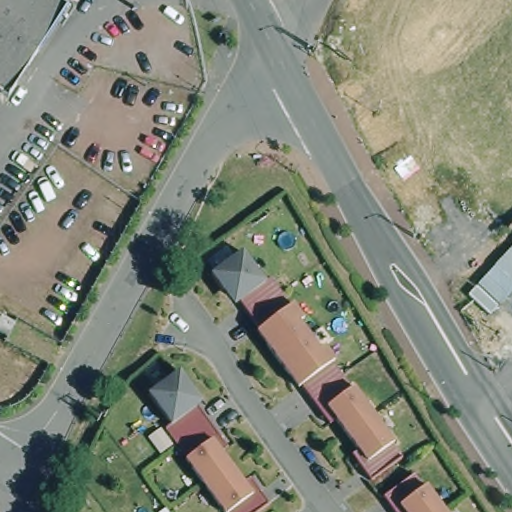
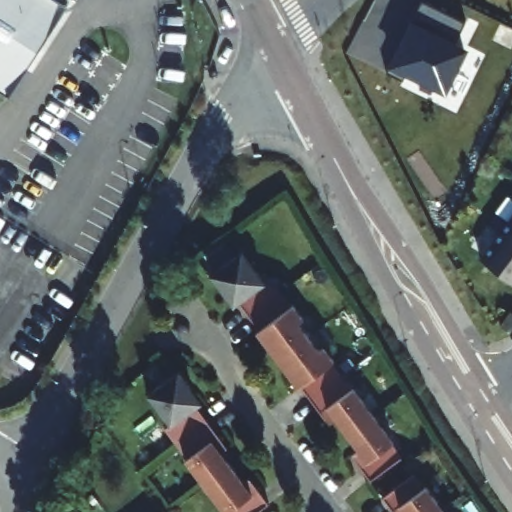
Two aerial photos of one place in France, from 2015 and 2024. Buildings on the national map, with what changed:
unchanged [(0,93),(0,0),(54,0),(69,10),(9,99),(0,93)]
new [(457,41),(470,47),(446,95),(389,67),(412,18),(420,0),(466,21),(457,41)]
new [(480,257),(512,214),(512,280),(480,257)]
unchanged [(245,246),(267,276),(272,273),(283,288),(293,301),(295,300),(305,314),(300,317),(310,331),(321,345),(325,342),(336,356),(334,357),(344,371),(354,384),(355,383),(375,410),(395,438),(394,439),(404,453),(372,476),(353,450),(360,445),(338,415),(331,420),(312,393),(303,380),(300,382),(280,354),(259,326),(262,324),(252,310),(236,289),(233,291),(227,283),(225,285),(213,268),(245,246)]
unchanged [(11,330),(0,323),(0,319),(7,310),(19,318),(11,330)]
unchanged [(192,381),(190,382),(197,391),(193,393),(229,442),(222,447),(245,477),(251,472),(270,498),(252,512),(232,512),(229,508),(227,509),(187,454),(189,453),(167,422),(172,419),(150,388),(181,365),(192,381)]
unchanged [(415,469),(425,483),(427,482),(447,510),(449,512),(398,512),(384,492),(415,469)]

